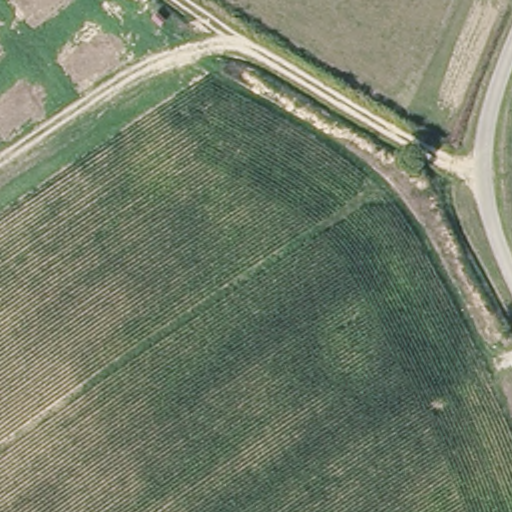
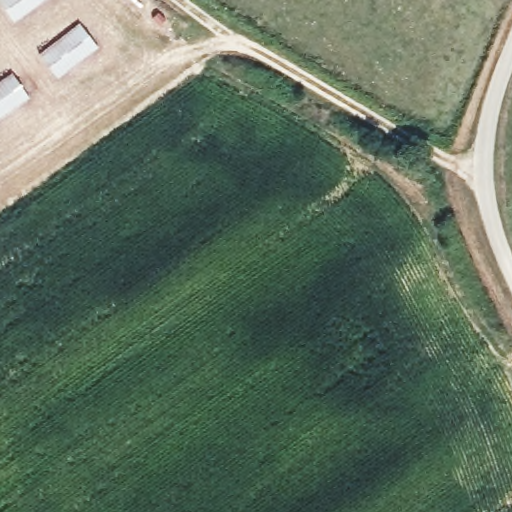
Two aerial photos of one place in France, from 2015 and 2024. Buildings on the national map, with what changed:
new [(14,20),(0,0),(43,0),(14,20)]
new [(54,81),(35,57),(74,26),(92,50),(54,81)]
new [(0,118),(0,80),(9,73),(27,98),(0,118)]

